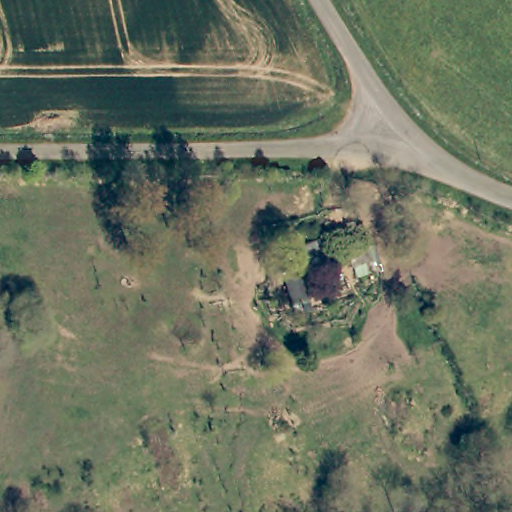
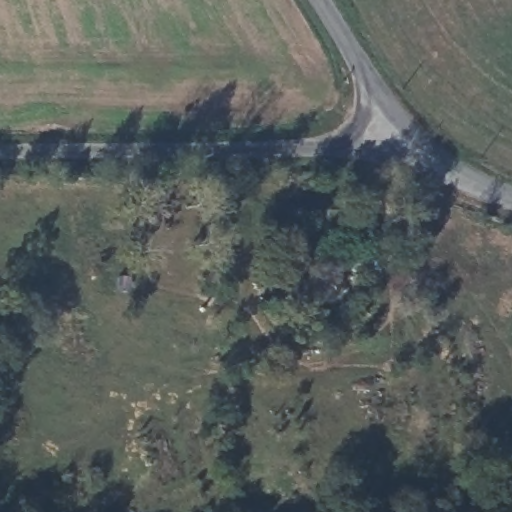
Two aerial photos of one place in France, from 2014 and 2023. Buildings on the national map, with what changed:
unchanged [(319,257),(293,269),(283,248),(311,236),(319,257)]

